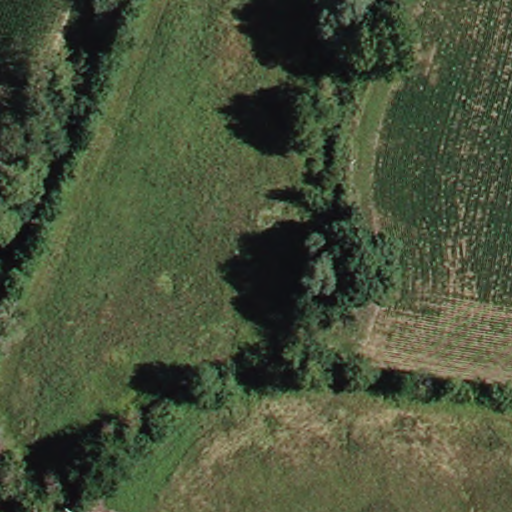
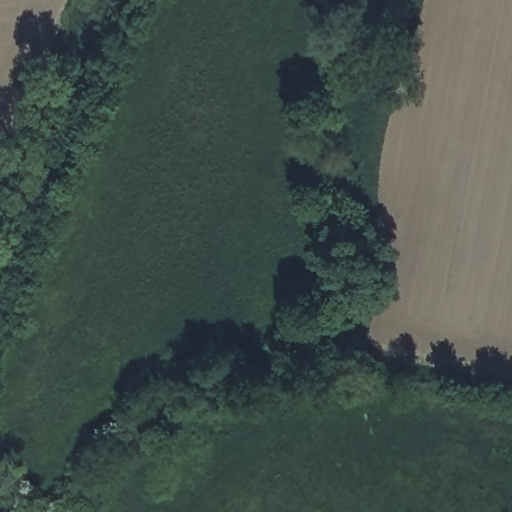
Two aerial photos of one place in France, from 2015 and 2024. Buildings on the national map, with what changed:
[]

